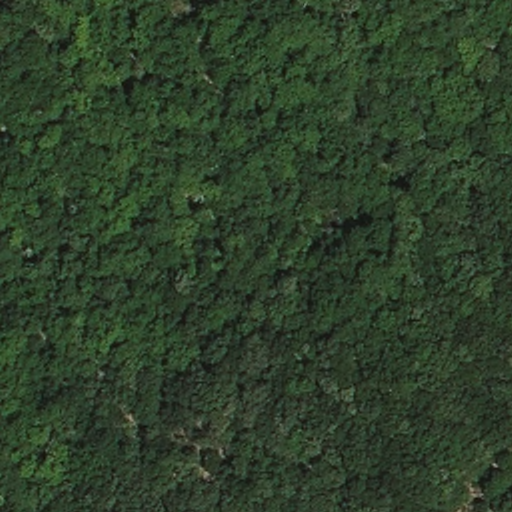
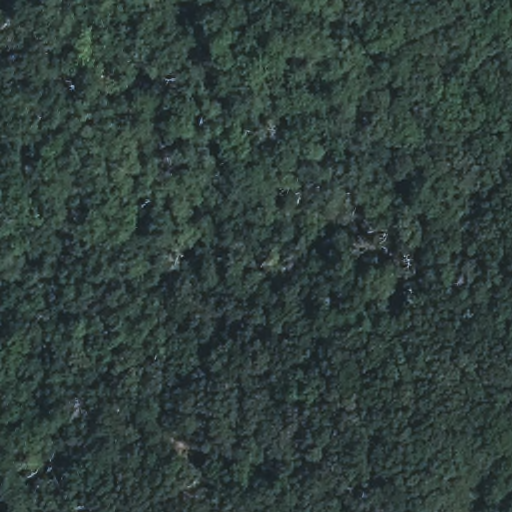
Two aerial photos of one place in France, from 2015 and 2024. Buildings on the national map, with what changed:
unchanged [(484,420),(496,435),(481,449),(467,434),(484,420)]

